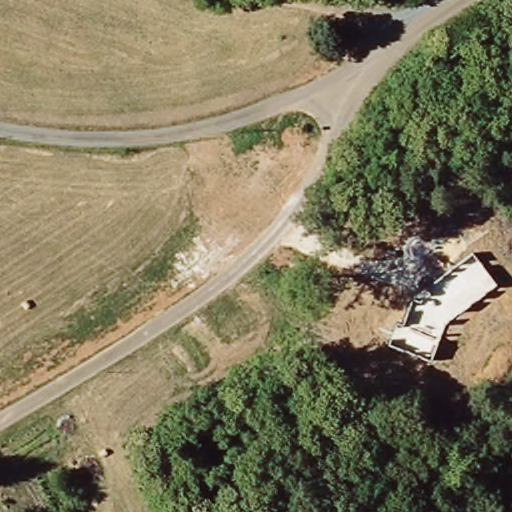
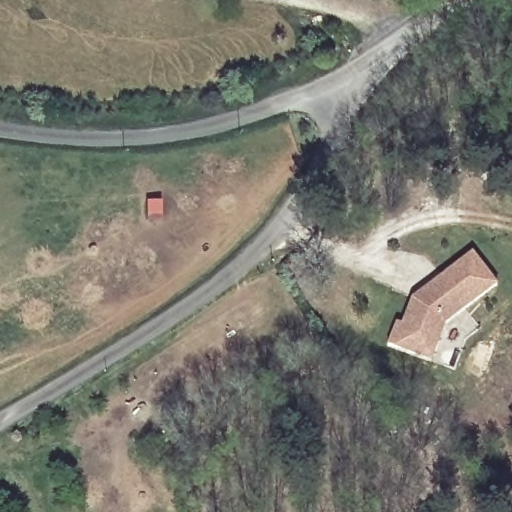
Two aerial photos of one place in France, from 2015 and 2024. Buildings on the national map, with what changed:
new [(388,346),(395,322),(402,324),(411,299),(473,250),(500,284),(447,325),(432,362),(388,346)]

